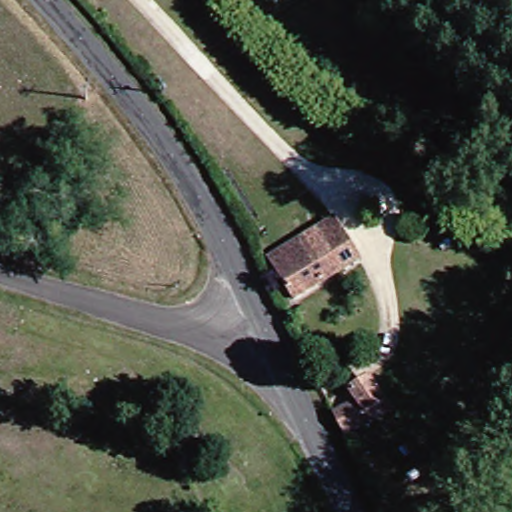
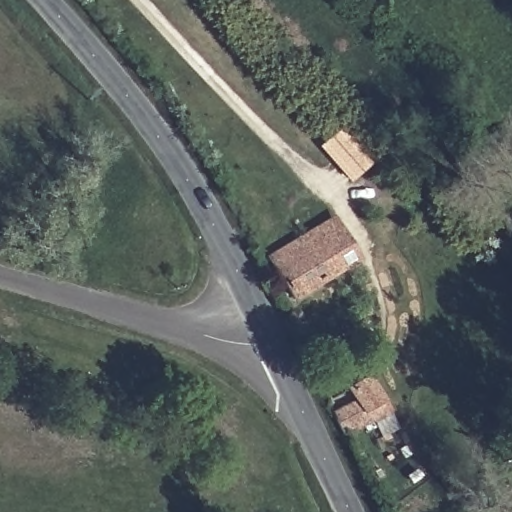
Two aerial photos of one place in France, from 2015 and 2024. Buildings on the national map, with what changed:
new [(372,166),(351,185),(318,148),(341,129),(372,166)]
unchanged [(324,237),(345,268),(296,297),(267,255),(332,215),(340,227),(324,237)]
unchanged [(347,387),(370,378),(387,408),(346,430),(333,407),(353,398),(347,387)]

